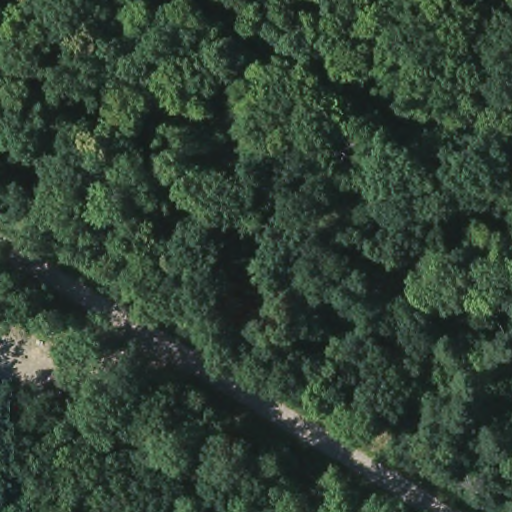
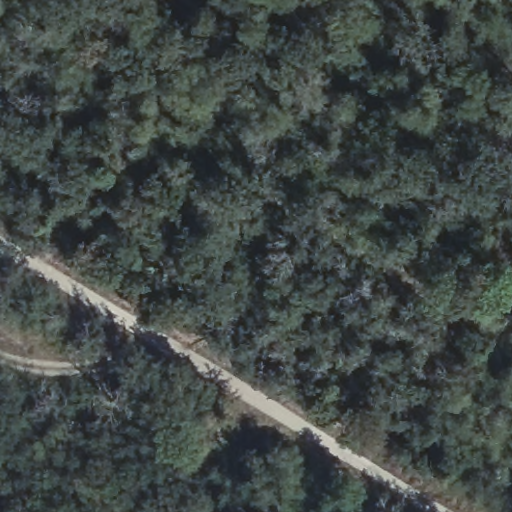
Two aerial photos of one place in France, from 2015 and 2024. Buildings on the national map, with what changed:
unchanged [(62,246),(81,215),(99,185),(117,198),(100,227),(82,256),(62,246)]
unchanged [(142,226),(135,239),(110,224),(119,212),(142,226)]
unchanged [(118,279),(142,241),(161,251),(137,290),(118,279)]

